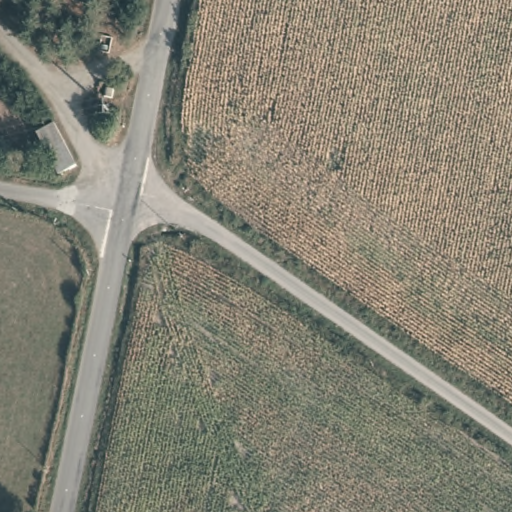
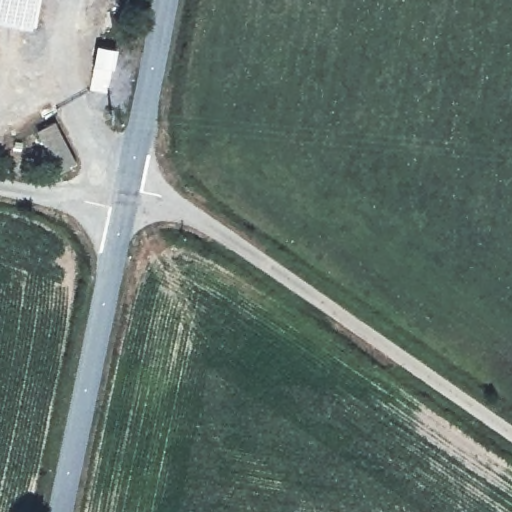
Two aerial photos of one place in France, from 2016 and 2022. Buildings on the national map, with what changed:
new [(27,27),(0,22),(0,0),(32,0),(27,27)]
unchanged [(59,119),(72,164),(55,170),(42,123),(59,119)]

